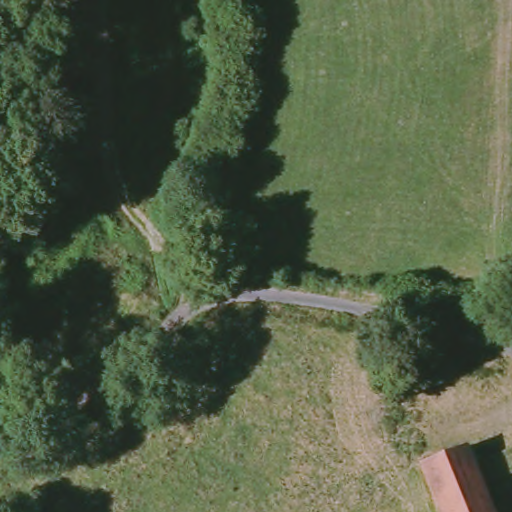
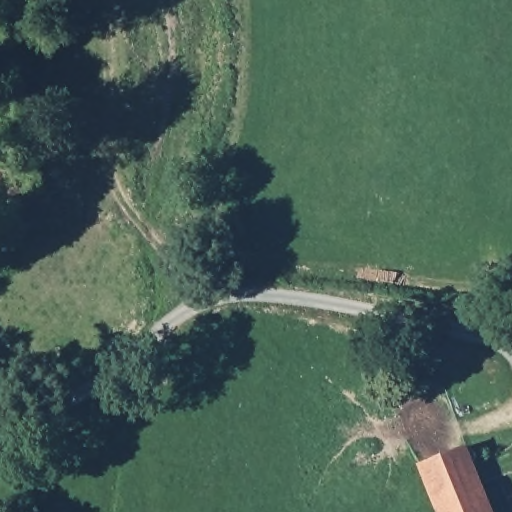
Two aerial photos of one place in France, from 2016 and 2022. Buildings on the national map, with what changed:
unchanged [(495,512),(443,512),(423,467),(467,448),(495,512)]

